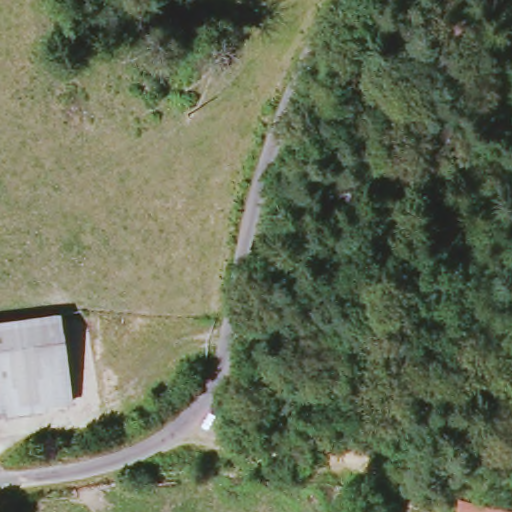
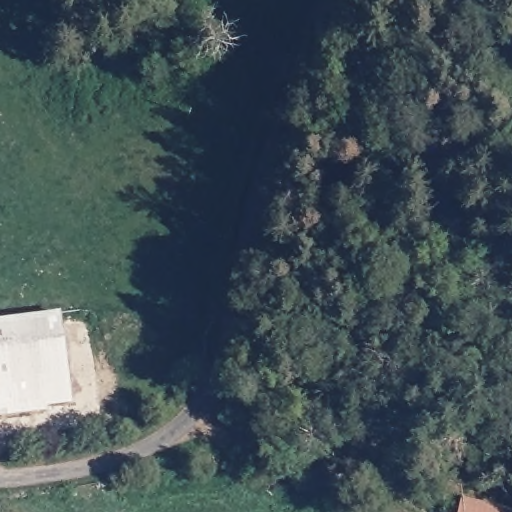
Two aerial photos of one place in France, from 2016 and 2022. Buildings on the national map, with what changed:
unchanged [(52,318),(63,403),(0,410),(0,323),(52,318)]
unchanged [(505,512),(456,512),(459,501),(505,512)]

